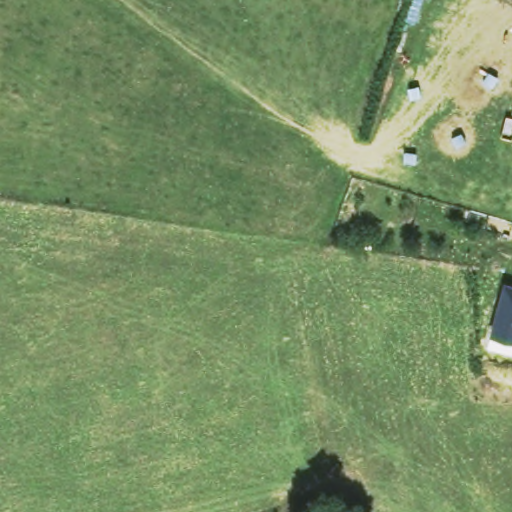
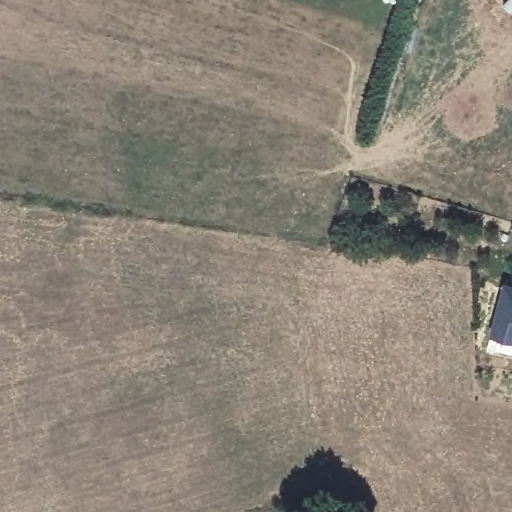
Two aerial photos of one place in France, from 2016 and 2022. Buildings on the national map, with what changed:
unchanged [(503,281),(512,283),(512,342),(490,336),(503,281)]

